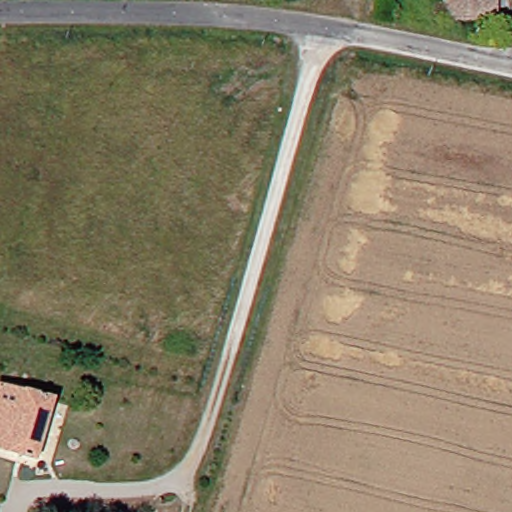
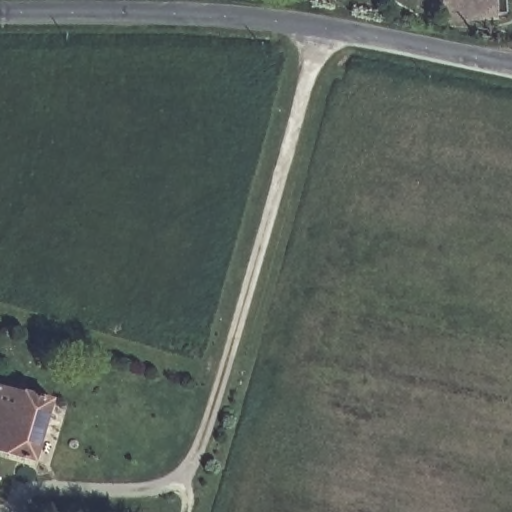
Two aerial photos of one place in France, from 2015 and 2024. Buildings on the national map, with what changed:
unchanged [(489,17),(438,16),(438,0),(489,0),(489,17)]
unchanged [(0,382),(17,387),(18,382),(50,392),(32,457),(0,447),(0,382)]

